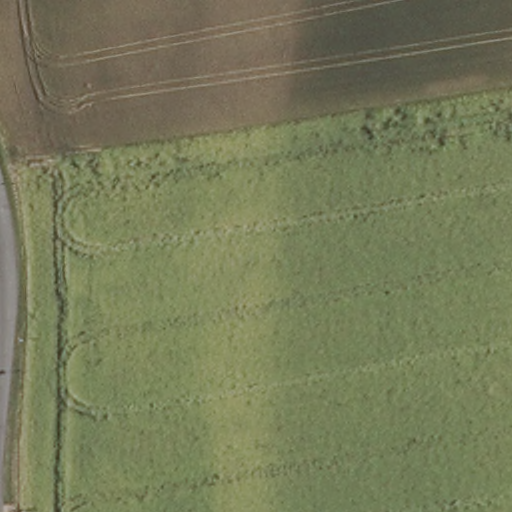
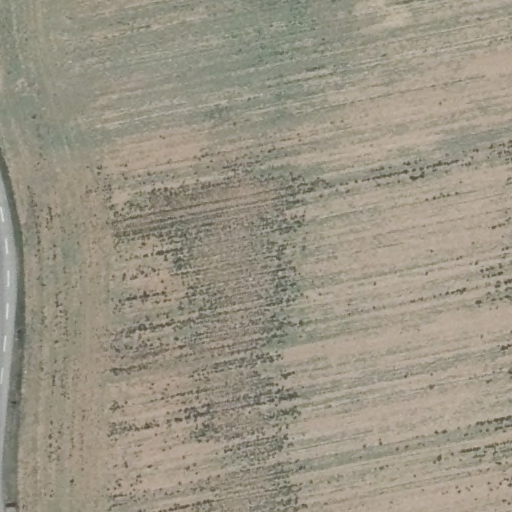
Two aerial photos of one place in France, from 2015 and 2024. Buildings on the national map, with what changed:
[]

